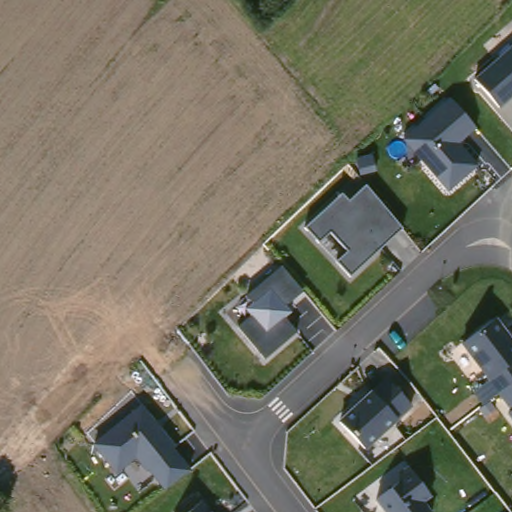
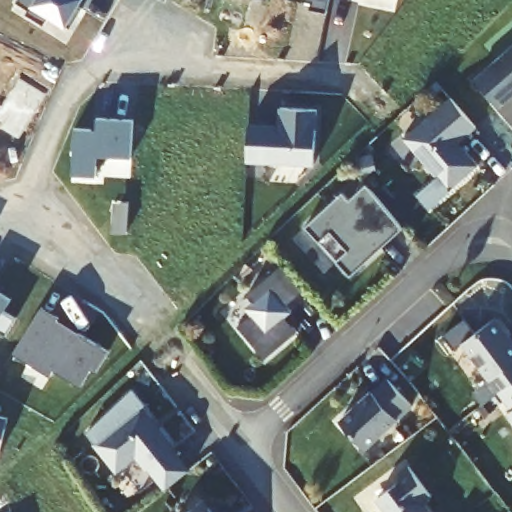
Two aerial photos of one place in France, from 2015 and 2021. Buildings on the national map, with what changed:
new [(17,0),(71,0),(70,2),(82,8),(70,27),(50,15),(44,25),(25,14),(29,10),(16,2),(17,0)]
unchanged [(503,106),(480,79),(512,50),(512,97),(503,106)]
unchanged [(406,139),(451,99),(472,123),(456,139),(478,164),(450,189),(406,139)]
new [(266,127),(280,127),(280,109),(316,112),(313,160),(246,156),(247,126),(266,127)]
new [(74,128),(91,129),(91,134),(95,135),(96,119),(133,122),(131,157),(96,156),(95,176),(71,175),(74,128)]
unchanged [(401,227),(350,276),(334,263),(347,249),(327,230),(316,241),(305,231),(340,195),(350,202),(366,188),(401,227)]
unchanged [(240,325),(254,315),(249,292),(283,265),(301,281),(286,297),(294,310),(290,315),(301,332),(265,356),(240,325)]
new [(4,312),(15,320),(5,337),(0,334),(0,295),(10,302),(4,312)]
new [(41,308),(60,320),(55,327),(75,340),(79,335),(109,353),(96,374),(92,372),(81,388),(55,372),(51,378),(12,355),(41,308)]
unchanged [(512,342),(512,411),(463,346),(495,321),(512,342)]
unchanged [(370,393),(387,378),(411,400),(365,445),(341,420),(370,393)]
unchanged [(190,467),(165,487),(138,457),(116,475),(92,445),(141,407),(190,467)]
unchanged [(411,472),(439,508),(435,512),(388,512),(377,497),(411,472)]
unchanged [(191,512),(205,501),(217,512),(191,512)]

